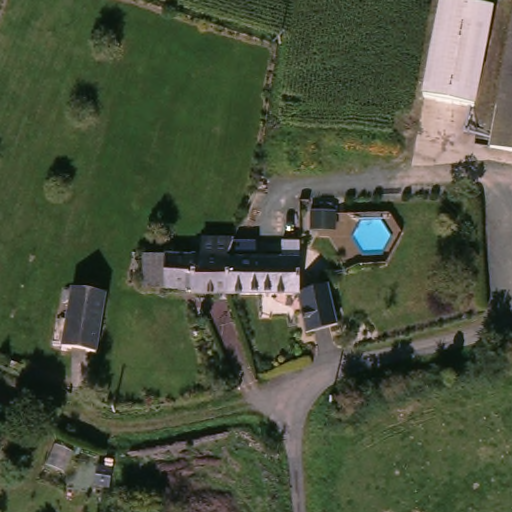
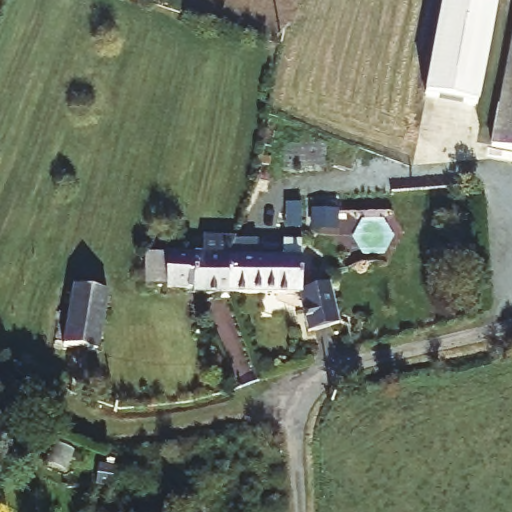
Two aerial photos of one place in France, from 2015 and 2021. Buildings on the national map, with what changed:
unchanged [(473,107),(424,97),(442,0),(448,0),(492,8),(473,107)]
unchanged [(501,142),(512,86),(512,143),(501,142)]
unchanged [(147,255),(170,254),(213,256),(216,235),(245,236),(237,257),(236,293),(196,292),(196,289),(168,288),(145,288),(147,255)]
unchanged [(237,257),(271,258),(271,295),(236,293),(237,257)]
unchanged [(271,258),(305,258),(305,290),(303,290),(304,296),(271,295),(271,258)]
unchanged [(303,290),(305,290),(333,283),(343,324),(312,332),(304,296),(303,290)]
unchanged [(77,287),(110,289),(102,348),(68,345),(77,287)]

